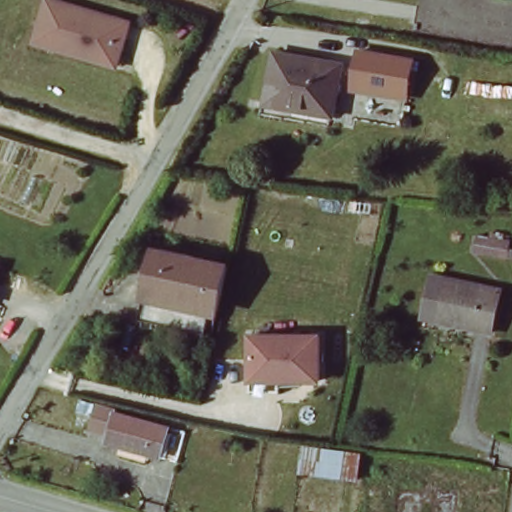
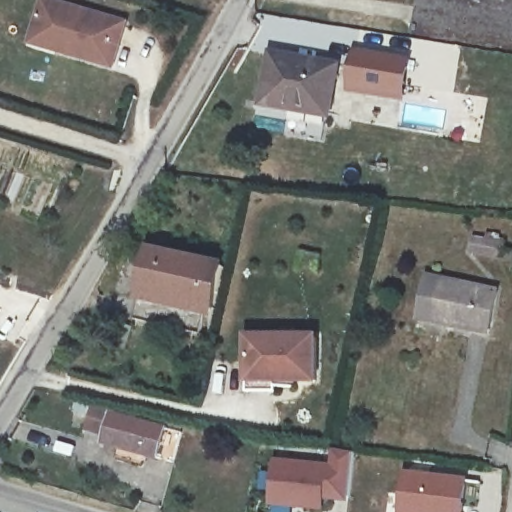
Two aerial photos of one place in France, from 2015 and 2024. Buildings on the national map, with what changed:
unchanged [(31,37),(42,2),(123,26),(110,69),(54,52),(29,44),(31,37)]
unchanged [(351,92),(354,83),(357,58),(410,67),(406,92),(405,102),(351,92)]
unchanged [(337,72),(329,122),(293,116),(293,106),(266,101),(274,63),(337,72)]
unchanged [(227,262),(218,302),(213,301),(205,330),(140,312),(159,246),(227,262)]
unchanged [(487,330),(432,316),(419,312),(431,270),(444,273),(498,287),(487,330)]
unchanged [(242,385),(243,369),(246,329),(315,334),(312,379),(272,376),(271,387),(242,385)]
unchanged [(172,430),(165,457),(114,446),(116,438),(95,433),(101,409),(121,413),(120,419),(172,430)]
demolished [(297,446),(361,453),(357,476),(294,475),(297,446)]
new [(331,466),(333,451),(354,453),(348,502),(327,501),(326,512),(314,512),(271,508),(276,460),(331,466)]
new [(405,469),(466,477),(463,512),(399,512),(405,469)]

